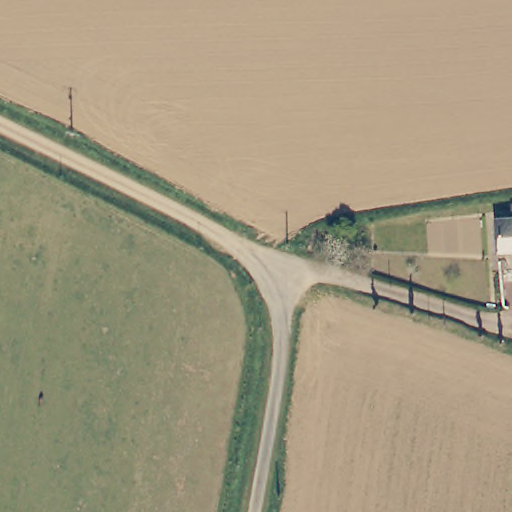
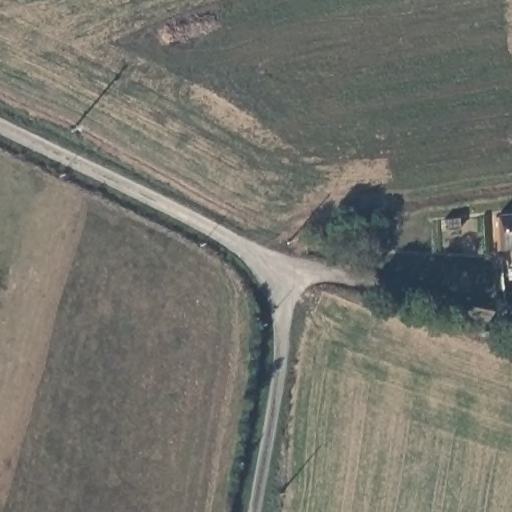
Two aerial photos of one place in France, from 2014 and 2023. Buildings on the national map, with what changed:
unchanged [(494,216),(512,216),(512,251),(500,251),(497,251),(494,216)]

